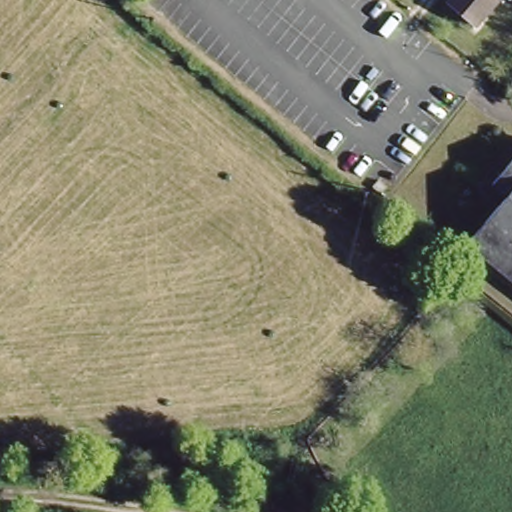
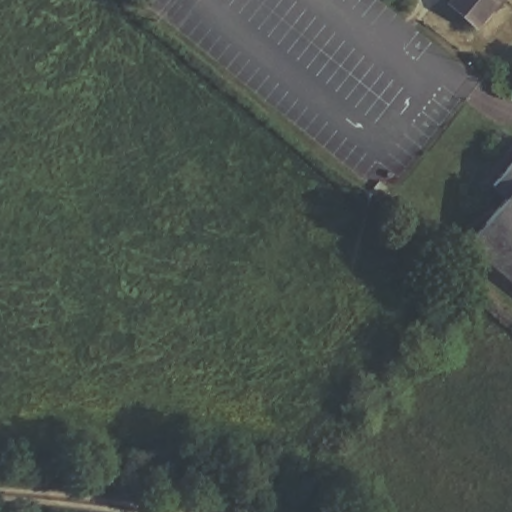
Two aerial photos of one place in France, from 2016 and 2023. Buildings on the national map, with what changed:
unchanged [(476,22),(450,0),(494,0),(476,22)]
unchanged [(466,246),(501,204),(488,193),(512,165),(512,284),(466,246)]

